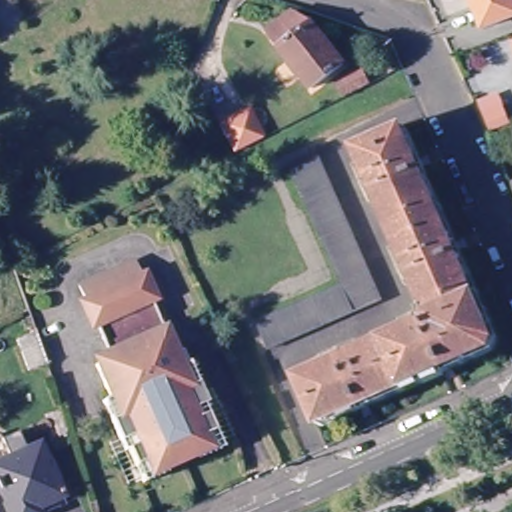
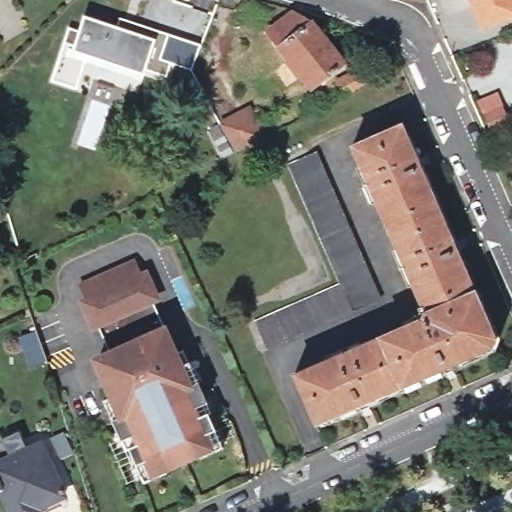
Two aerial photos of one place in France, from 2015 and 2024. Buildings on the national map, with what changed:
unchanged [(512,10),(484,21),(476,0),(512,0),(512,10)]
unchanged [(291,59),(296,56),(287,44),(276,30),(302,12),(319,21),(353,62),(318,87),(304,68),(299,72),(291,59)]
new [(68,26),(79,30),(84,16),(118,29),(122,19),(201,49),(192,72),(172,64),(167,77),(141,67),(131,95),(79,75),(74,87),(48,78),(68,26)]
unchanged [(345,77),(368,66),(376,81),(352,93),(345,77)]
unchanged [(512,117),(512,122),(494,129),(486,111),(506,104),(512,117)]
unchanged [(252,106),(268,136),(265,138),(237,152),(222,122),(250,107),(252,106)]
unchanged [(356,144),(403,123),(499,340),(321,420),(299,371),(430,313),(356,144)]
unchanged [(296,167),(325,155),(387,301),(276,350),(263,321),(345,285),(296,167)]
unchanged [(512,184),(512,188),(511,185),(512,184)]
unchanged [(137,263),(179,356),(186,352),(214,415),(211,417),(227,451),(204,461),(203,458),(169,473),(170,476),(148,486),(132,452),(129,453),(107,403),(114,400),(100,367),(105,365),(103,360),(113,355),(83,287),(137,263)]
unchanged [(41,446),(64,500),(55,504),(58,510),(53,512),(8,512),(0,494),(0,465),(41,446)]

